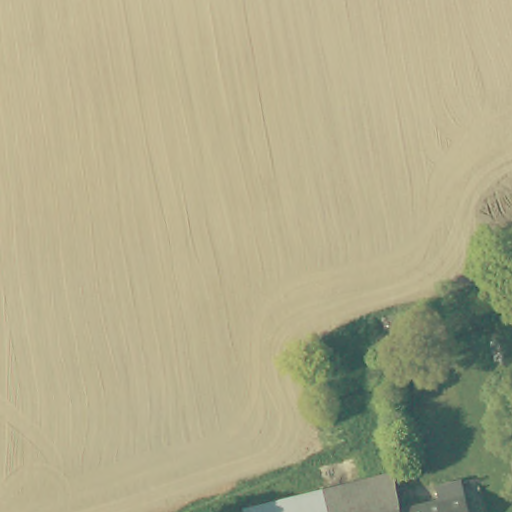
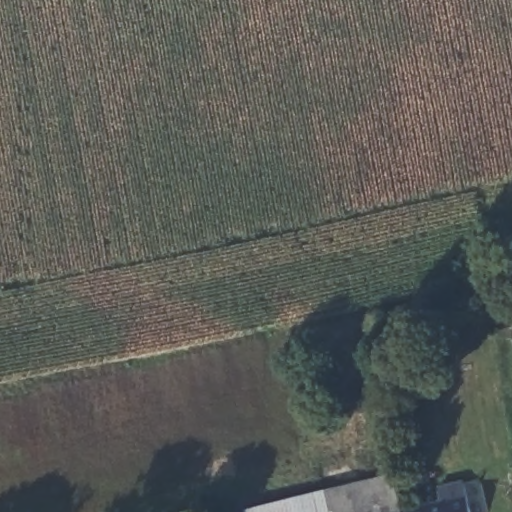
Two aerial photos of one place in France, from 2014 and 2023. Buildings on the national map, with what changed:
unchanged [(393,479),(399,512),(352,512),(347,490),(393,479)]
unchanged [(437,490),(463,485),(469,512),(402,512),(439,505),(437,490)]
unchanged [(352,512),(255,512),(347,490),(352,512)]

